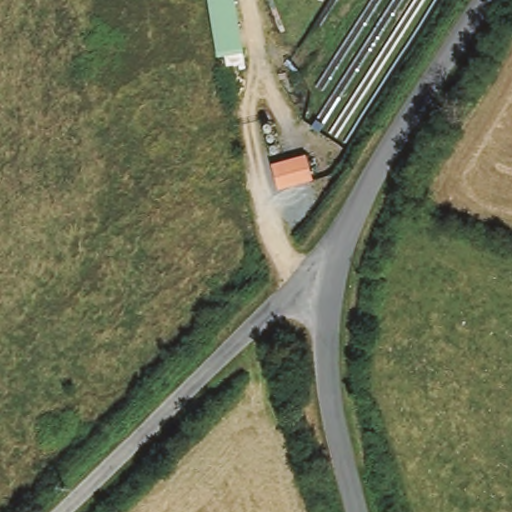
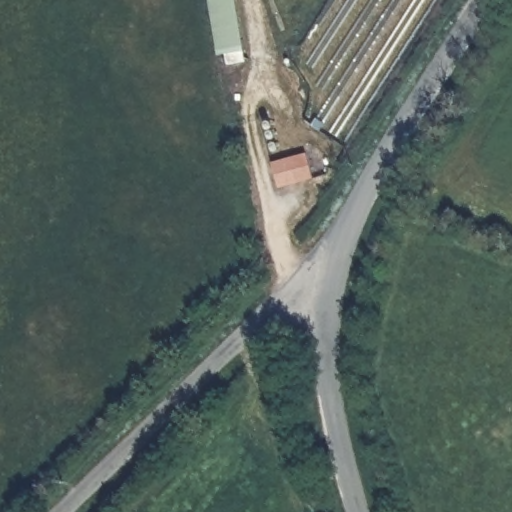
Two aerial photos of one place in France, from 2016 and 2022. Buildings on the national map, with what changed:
unchanged [(242,50),(244,62),(226,65),(224,54),(216,56),(208,0),(235,0),(242,50)]
unchanged [(272,162),(306,154),(312,180),(277,189),(272,162)]

